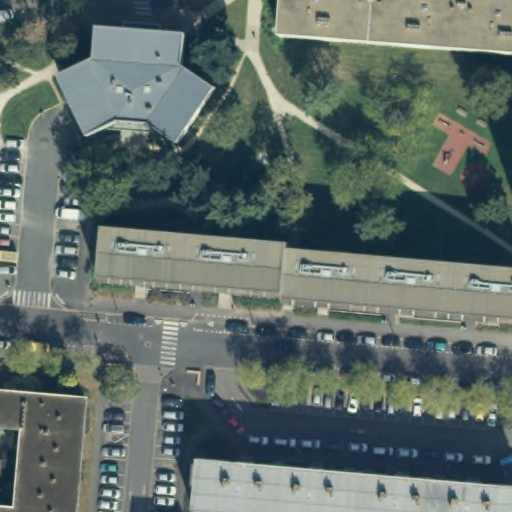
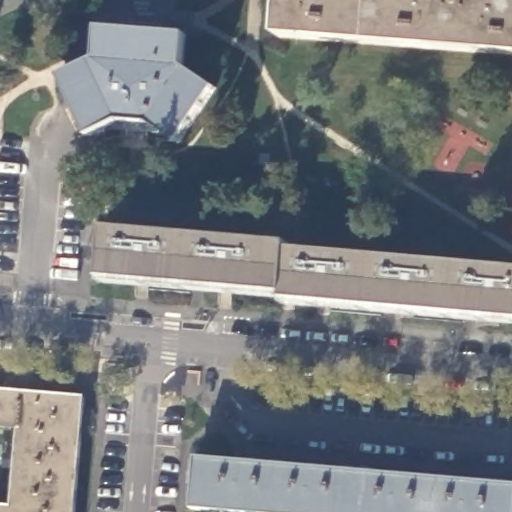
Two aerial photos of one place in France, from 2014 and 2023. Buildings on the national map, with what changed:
unchanged [(326,40),(277,37),(280,0),(512,0),(512,54),(326,40)]
unchanged [(57,77),(56,75),(92,59),(95,28),(95,27),(181,35),(180,47),(179,65),(212,88),(174,142),(146,123),(116,120),(85,135),(82,130),(57,77)]
unchanged [(283,297),(283,292),(101,276),(105,226),(288,243),(287,247),(512,267),(512,317),(283,297)]
unchanged [(70,512),(0,512),(0,390),(80,397),(70,512)]
unchanged [(190,509),(195,458),(512,485),(512,512),(224,512),(190,509)]

